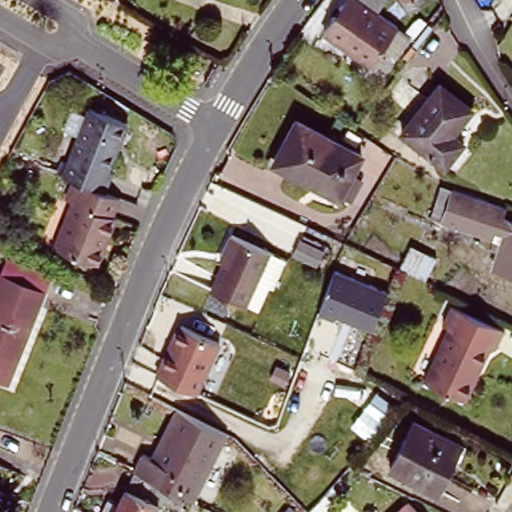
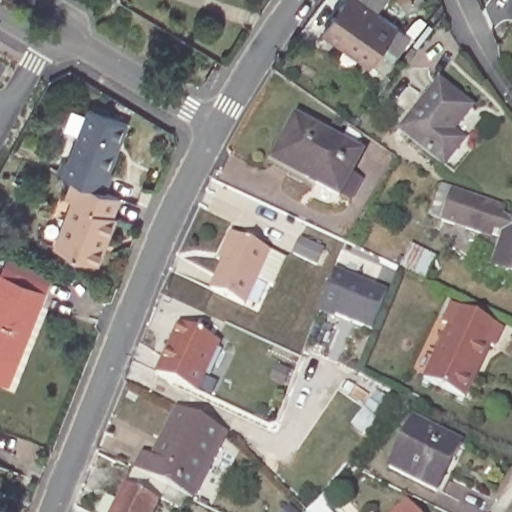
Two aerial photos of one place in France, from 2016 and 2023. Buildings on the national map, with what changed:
unchanged [(345,1),(345,0),(386,0),(379,13),(410,33),(405,40),(384,73),(325,31),(345,1)]
unchanged [(418,7),(407,14),(401,0),(423,0),(417,4),(418,7)]
unchanged [(459,148),(444,165),(401,132),(440,83),(472,109),(452,133),(463,143),(459,148)]
unchanged [(75,182),(59,175),(65,158),(72,160),(92,111),(129,126),(109,172),(113,174),(105,193),(75,182)]
unchanged [(275,159),(297,118),(361,153),(339,198),(302,178),(274,163),(275,159)]
unchanged [(112,219),(115,220),(97,265),(55,248),(74,204),(67,201),(75,182),(105,193),(119,199),(112,219)]
unchanged [(512,274),(492,267),(501,240),(442,220),(452,188),(505,207),(502,217),(512,220),(512,274)]
unchanged [(282,259),(270,284),(257,278),(244,308),(210,291),(223,264),(218,261),(222,254),(231,234),(282,259)]
unchanged [(317,266),(294,254),(300,240),(324,252),(317,266)]
unchanged [(2,273),(7,260),(50,276),(38,305),(19,357),(0,349),(0,272),(2,273)]
unchanged [(318,314),(332,269),(386,292),(370,332),(334,316),(332,319),(318,314)]
unchanged [(425,379),(450,326),(444,322),(452,306),(505,331),(497,347),(492,344),(465,399),(425,379)]
unchanged [(155,373),(168,343),(172,344),(180,324),(217,341),(195,391),(155,373)]
unchanged [(0,379),(0,349),(19,357),(9,382),(0,379)]
unchanged [(194,491),(144,465),(152,448),(160,453),(185,401),(235,426),(202,495),(194,491)]
unchanged [(389,468),(413,419),(459,441),(435,490),(389,468)]
unchanged [(117,492),(127,497),(144,465),(194,491),(189,502),(170,493),(160,512),(112,512),(108,510),(117,492)]
unchanged [(309,508),(319,498),(331,512),(306,512),(309,508)]
unchanged [(418,512),(394,512),(407,500),(418,512)]

